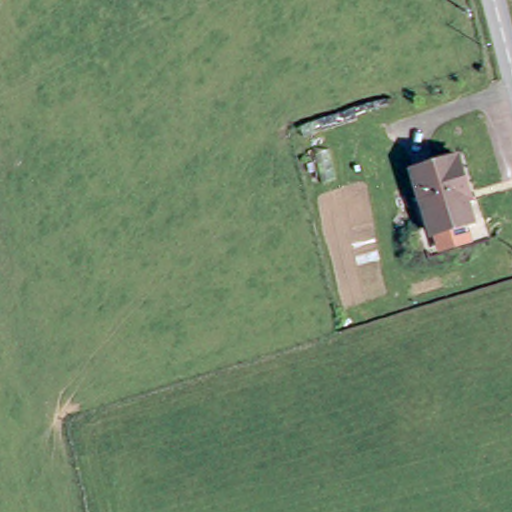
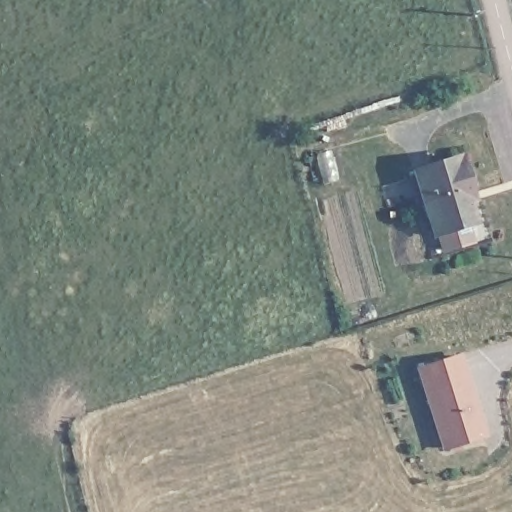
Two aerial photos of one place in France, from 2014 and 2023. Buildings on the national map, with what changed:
unchanged [(418,175),(472,160),(483,196),(472,200),(481,227),(438,240),(418,175)]
new [(487,436),(440,451),(415,368),(462,352),(487,436)]

